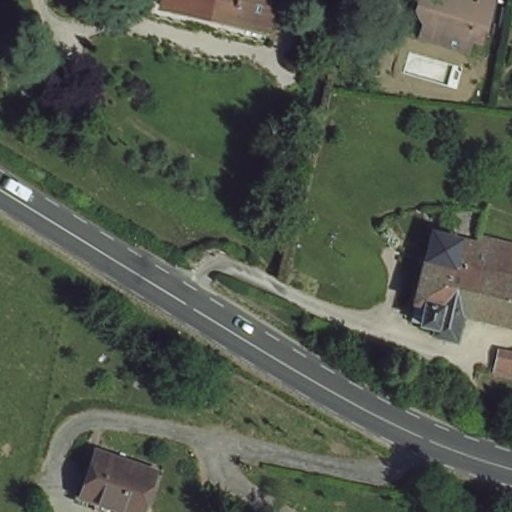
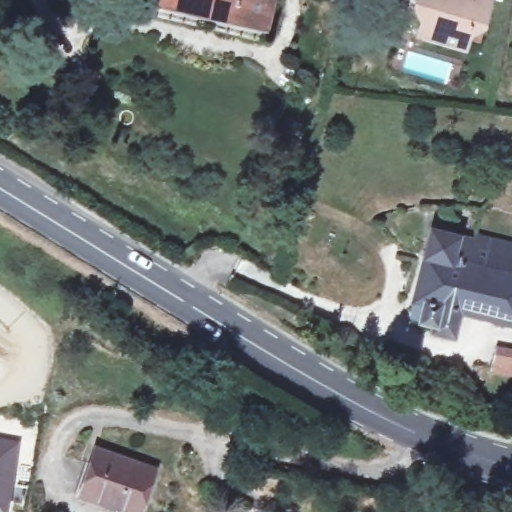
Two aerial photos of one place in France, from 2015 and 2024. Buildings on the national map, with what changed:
unchanged [(150,0),(269,0),(261,35),(148,9),(150,0)]
unchanged [(461,49),(413,35),(419,11),(409,8),(412,0),(442,0),(447,1),(447,0),(487,0),(479,29),(475,41),(464,38),(461,49)]
unchanged [(413,303),(432,234),(512,254),(512,328),(459,315),(453,341),(431,336),(433,329),(419,325),(421,319),(410,317),(413,303)]
unchanged [(512,349),(512,375),(492,370),(494,359),(497,349),(511,352),(512,348),(512,349)]
new [(7,512),(0,512),(0,438),(20,441),(7,512)]
unchanged [(95,448),(154,468),(140,511),(81,492),(95,448)]

